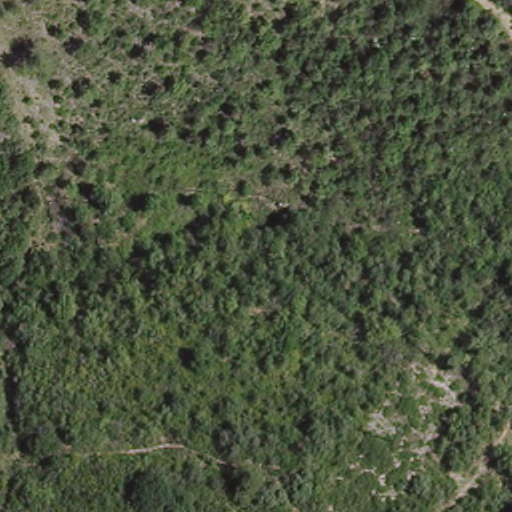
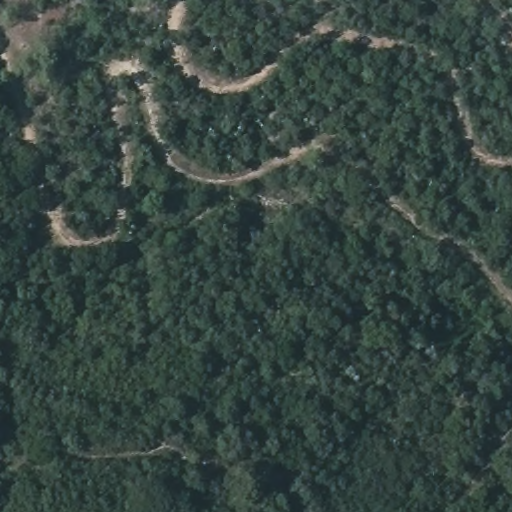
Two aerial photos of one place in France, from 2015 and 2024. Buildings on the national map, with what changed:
[]

